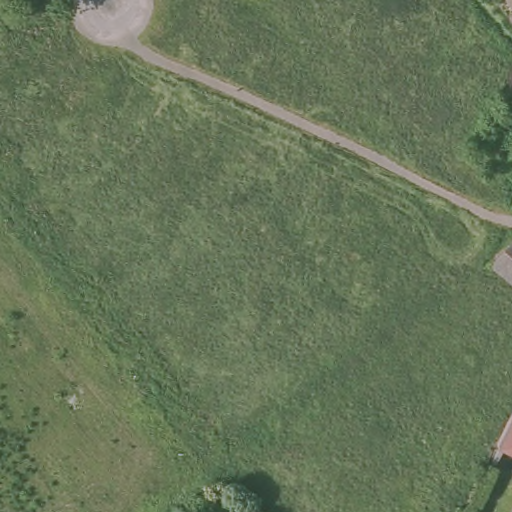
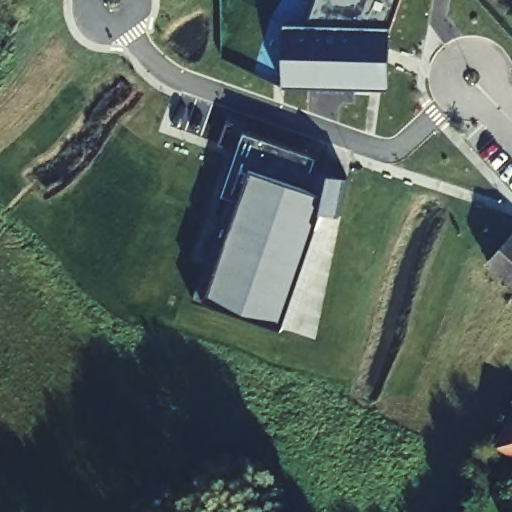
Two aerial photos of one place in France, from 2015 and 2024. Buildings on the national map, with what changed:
new [(307,24),(316,0),(403,0),(387,49),(378,45),(372,90),(283,88),(282,23),(307,24)]
new [(315,170),(347,176),(340,215),(322,213),(283,328),(198,298),(232,198),(222,194),(245,129),(318,156),(315,170)]
unchanged [(475,250),(499,223),(512,234),(512,281),(502,273),(475,250)]
unchanged [(512,448),(498,442),(511,414),(512,412),(512,448)]

